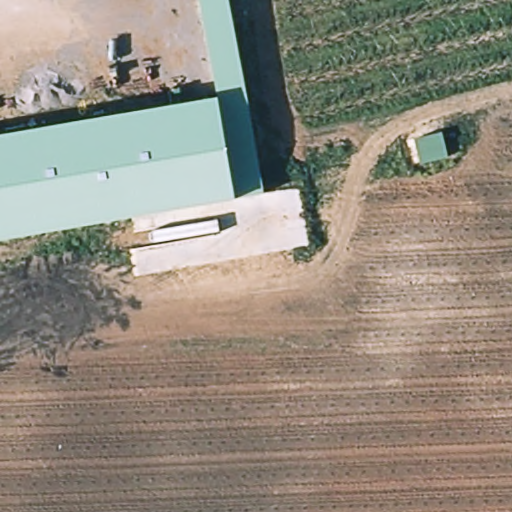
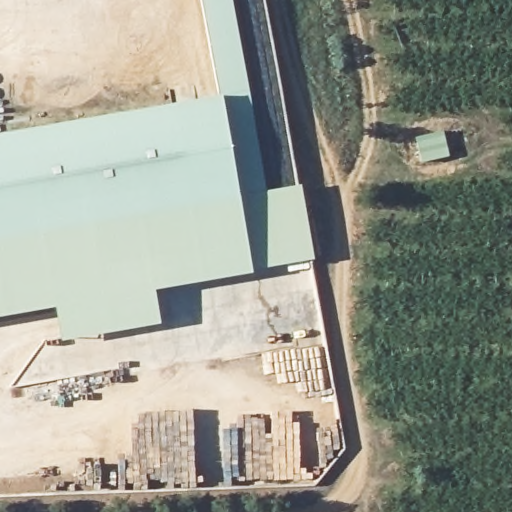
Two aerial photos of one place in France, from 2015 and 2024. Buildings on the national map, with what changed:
unchanged [(237,196),(0,238),(0,135),(220,96),(202,0),(232,0),(265,190),(237,196)]
unchanged [(447,157),(422,162),(417,139),(442,133),(447,157)]
new [(300,184),(313,259),(251,271),(154,291),(159,322),(60,339),(54,307),(0,316),(0,238),(237,196),(265,190),(300,184)]

